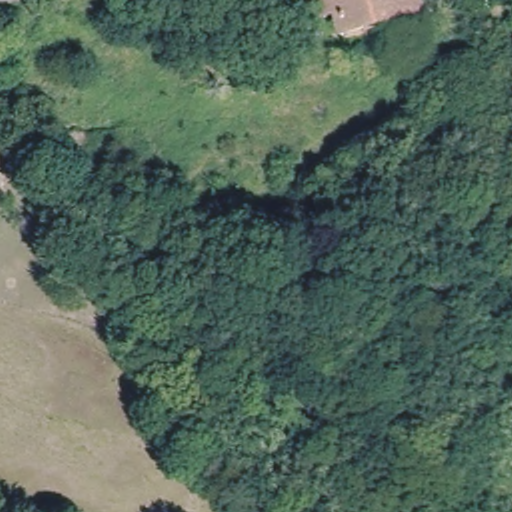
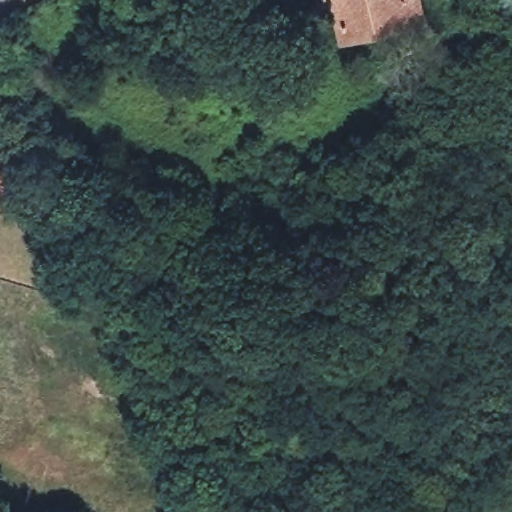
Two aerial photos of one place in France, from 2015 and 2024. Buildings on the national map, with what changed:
unchanged [(336,21),(325,24),(318,0),(419,0),(424,16),(342,41),(336,21)]

